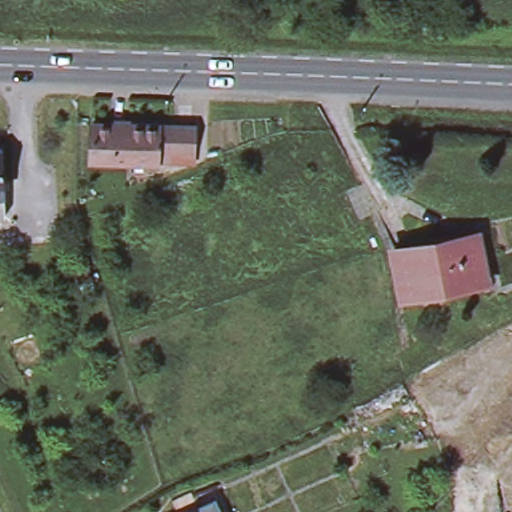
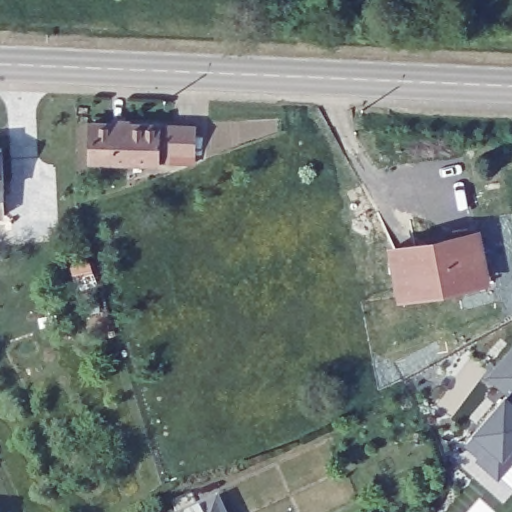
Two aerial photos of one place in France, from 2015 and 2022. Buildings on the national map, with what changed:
unchanged [(155,159),(91,158),(92,122),(157,125),(193,126),(192,151),(191,160),(155,159)]
unchanged [(0,147),(3,192),(5,214),(0,215),(0,147)]
unchanged [(387,245),(470,228),(477,227),(487,278),(438,288),(437,281),(396,290),(387,245)]
unchanged [(88,265),(91,277),(80,280),(76,269),(88,265)]
new [(477,454),(465,443),(473,431),(472,429),(505,392),(507,393),(508,393),(487,375),(512,345),(512,463),(498,478),(475,457),(477,454)]
demolished [(475,394),(457,408),(445,392),(463,378),(475,394)]
unchanged [(214,499),(220,512),(185,512),(198,506),(214,499)]

